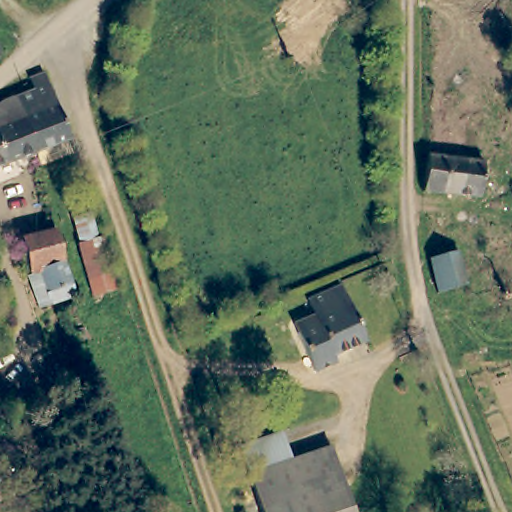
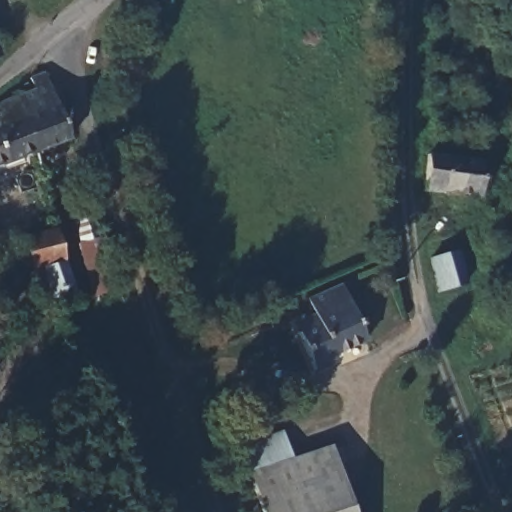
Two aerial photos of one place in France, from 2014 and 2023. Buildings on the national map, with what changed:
unchanged [(2,55),(0,56),(0,50),(2,55)]
unchanged [(41,68),(68,140),(36,152),(15,97),(31,90),(27,80),(41,68)]
unchanged [(36,152),(0,167),(0,104),(15,97),(36,152)]
unchanged [(420,194),(426,159),(483,172),(477,207),(420,194)]
unchanged [(99,235),(105,233),(120,292),(92,298),(69,218),(92,212),(99,235)]
unchanged [(32,273),(21,240),(55,227),(63,252),(76,293),(53,300),(42,304),(32,273)]
unchanged [(432,260),(456,251),(466,280),(445,288),(444,288),(432,260)]
unchanged [(346,291),(367,346),(335,358),(338,367),(316,375),(303,339),(299,327),(320,317),(315,304),(346,291)]
unchanged [(244,448),(281,435),(291,464),(254,478),(244,448)]
unchanged [(331,449),(342,483),(265,509),(254,478),(291,464),(331,449)]
unchanged [(352,512),(265,512),(265,509),(342,483),(352,512)]

